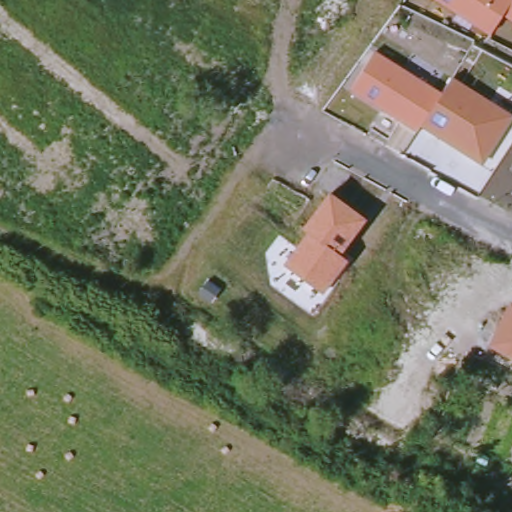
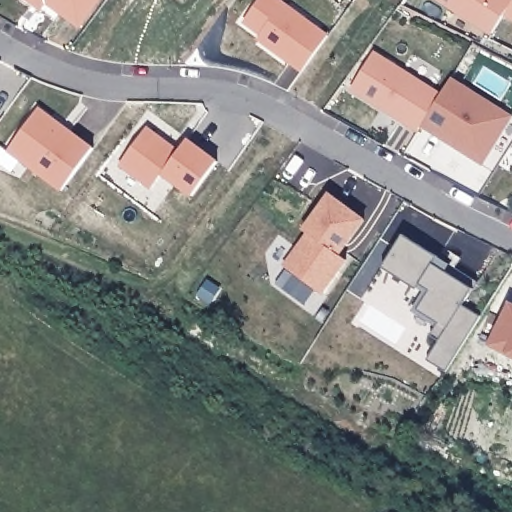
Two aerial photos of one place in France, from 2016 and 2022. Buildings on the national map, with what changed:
new [(29,0),(99,0),(80,27),(45,1),(40,9),(32,3),(29,0)]
new [(279,0),(328,36),(302,71),(264,44),(267,39),(244,22),(260,0),(279,0)]
unchanged [(504,16),(491,34),(438,0),(512,0),(512,21),(504,16)]
unchanged [(445,91),(452,78),(512,115),(512,119),(483,166),(421,128),(417,133),(350,90),(377,53),(445,91)]
new [(36,114),(57,130),(61,125),(93,149),(62,191),(8,151),(36,114)]
new [(147,128),(178,152),(187,140),(217,163),(192,197),(162,174),(150,188),(119,165),(147,128)]
unchanged [(365,220),(341,254),(347,259),(322,291),(283,265),(307,234),(302,230),(328,194),(365,220)]
new [(450,265),(477,282),(472,289),(462,307),(480,317),(447,372),(427,361),(440,339),(432,336),(437,327),(412,311),(423,292),(382,268),(405,236),(450,265)]
unchanged [(512,303),(512,360),(487,348),(510,302),(512,303)]

